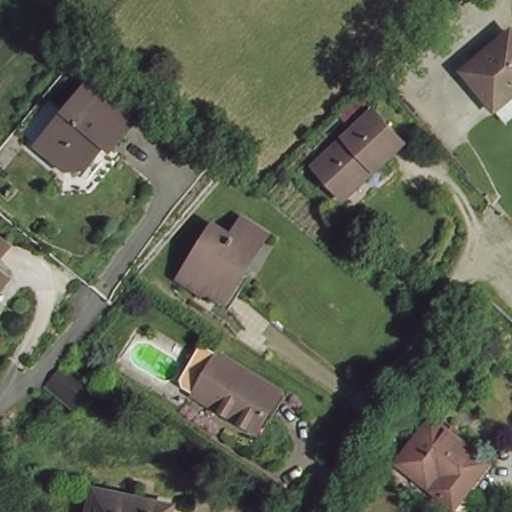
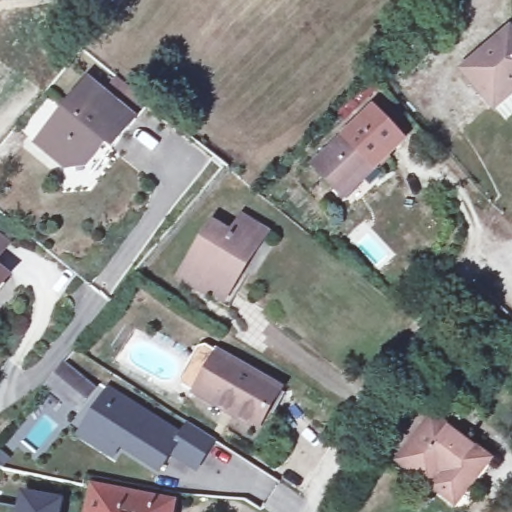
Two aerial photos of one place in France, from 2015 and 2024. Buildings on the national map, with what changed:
unchanged [(495,106),(465,70),(512,32),(512,93),(495,106)]
unchanged [(129,131),(117,145),(110,139),(93,160),(68,161),(40,139),(56,121),(61,125),(73,111),(68,106),(93,75),(136,110),(142,115),(129,131)]
unchanged [(338,192),(313,166),(374,109),(404,141),(374,169),(343,198),(338,192)]
unchanged [(206,278),(202,284),(182,272),(214,221),(233,233),(241,221),(245,214),(264,228),(258,237),(241,264),(246,267),(236,284),(230,293),(206,278)]
unchanged [(0,238),(7,244),(0,252),(0,238)]
unchanged [(0,286),(0,269),(8,276),(0,286)]
unchanged [(210,346),(293,394),(271,433),(188,386),(185,376),(201,349),(210,346)]
unchanged [(71,405),(48,385),(54,377),(63,365),(88,385),(96,392),(87,404),(80,412),(71,405)]
new [(191,423),(218,440),(199,469),(174,453),(163,471),(123,446),(117,455),(91,439),(83,433),(110,389),(119,395),(183,436),(191,423)]
unchanged [(468,479),(478,485),(466,503),(441,487),(443,484),(396,455),(426,408),(488,447),(468,479)]
unchanged [(87,512),(91,490),(171,504),(169,512),(87,512)]
new [(25,510),(28,497),(65,504),(63,512),(0,512),(0,505),(7,506),(25,510)]

